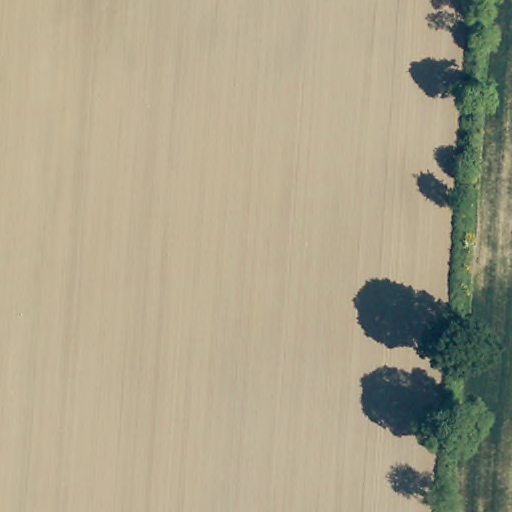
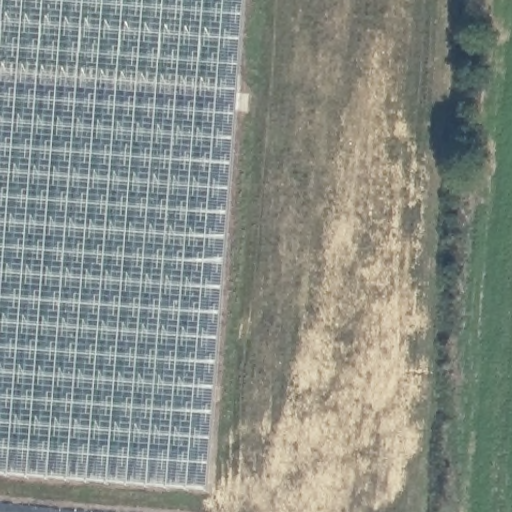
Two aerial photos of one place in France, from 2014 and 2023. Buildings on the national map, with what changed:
new [(210,488),(0,473),(0,0),(246,0),(210,488)]

